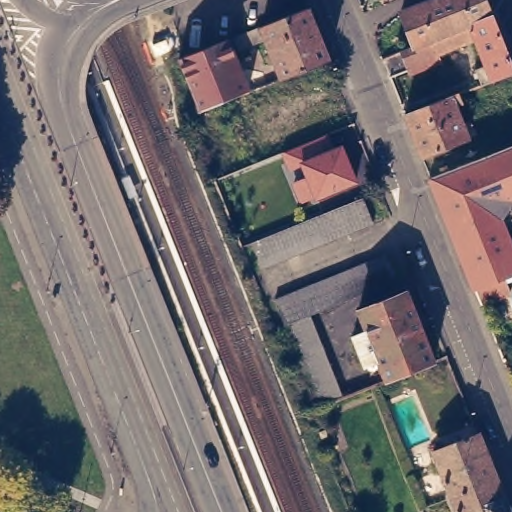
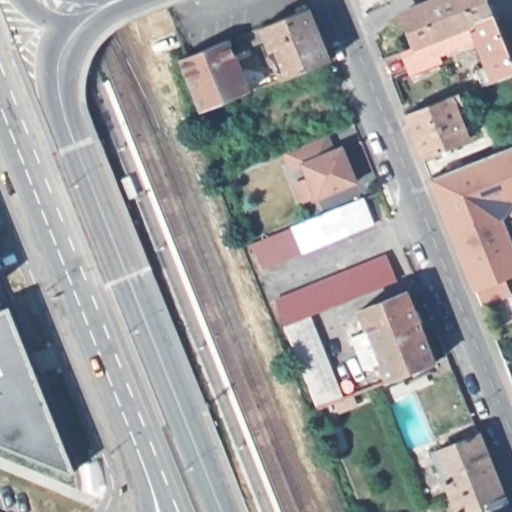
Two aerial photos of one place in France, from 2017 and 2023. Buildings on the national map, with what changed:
unchanged [(507,71),(487,79),(482,65),(491,62),(481,35),(445,51),(447,58),(416,70),(414,65),(407,47),(420,42),(406,9),(429,0),(494,0),(498,10),(504,23),(512,43),(512,83),(507,71)]
unchanged [(330,56),(283,75),(277,58),(272,60),(271,59),(268,50),(272,48),(262,21),(309,3),(330,56)]
unchanged [(257,23),(262,36),(256,38),(240,45),(234,32),(257,23)]
unchanged [(228,35),(248,87),(244,91),(210,107),(199,105),(180,54),(228,35)]
unchanged [(452,95),(461,92),(462,95),(456,97),(470,139),(422,157),(405,114),(452,95)]
unchanged [(327,133),(335,147),(342,144),(358,182),(315,201),(313,197),(300,204),(292,183),(305,178),(300,166),(289,171),(281,153),(327,133)]
unchanged [(505,214),(512,231),(512,271),(510,272),(480,284),(436,173),(512,143),(512,205),(505,214)]
unchanged [(363,193),(374,219),(264,265),(252,238),(363,193)]
unchanged [(275,295),(386,250),(397,276),(311,311),(286,321),(275,295)]
new [(0,280),(1,282),(0,283),(0,280)]
unchanged [(387,356),(373,361),(363,331),(377,325),(370,304),(416,287),(445,358),(398,377),(387,356)]
new [(70,472),(0,444),(0,310),(10,306),(75,471),(70,472)]
unchanged [(286,321),(311,311),(343,392),(322,403),(286,321)]
unchanged [(434,447),(479,428),(497,474),(452,492),(434,447)]
unchanged [(497,474),(512,511),(512,512),(460,512),(452,492),(497,474)]

